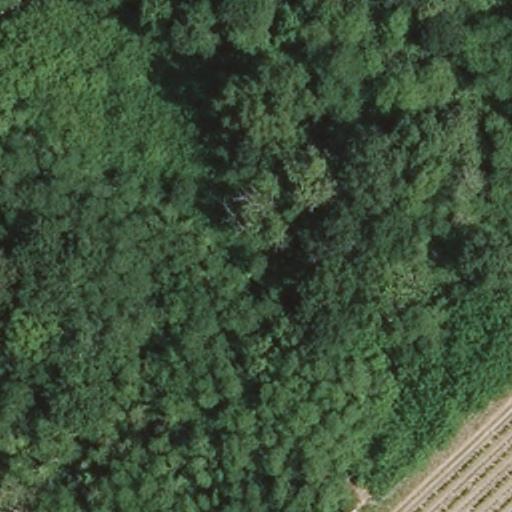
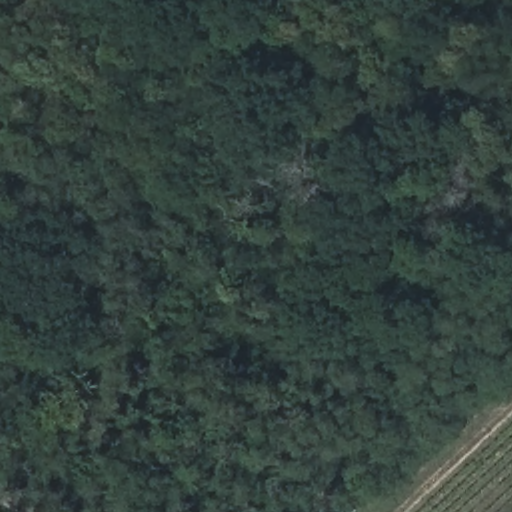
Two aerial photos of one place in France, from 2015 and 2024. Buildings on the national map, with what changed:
unchanged [(353,512),(341,512),(329,501),(360,466),(380,483),(353,512)]

